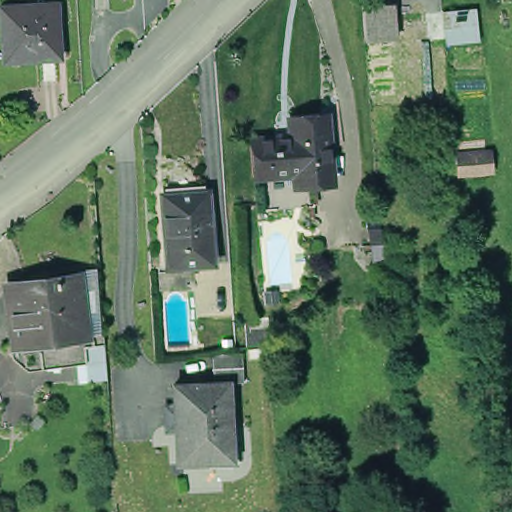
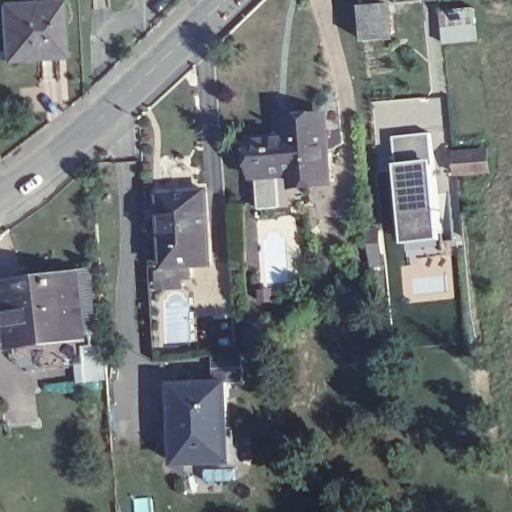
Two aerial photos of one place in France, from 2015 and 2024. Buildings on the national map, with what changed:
unchanged [(0,20),(0,11),(27,10),(27,6),(65,4),(65,15),(55,15),(57,62),(2,65),(0,20)]
unchanged [(374,32),(372,10),(395,7),(398,42),(375,45),(374,32)]
unchanged [(449,45),(447,12),(478,9),(481,42),(449,45)]
demolished [(447,39),(428,41),(426,15),(429,14),(445,13),(447,39)]
unchanged [(283,211),(271,212),(264,213),(261,179),(257,141),(277,139),(292,138),(291,124),(330,121),(335,186),(314,188),(315,209),(304,210),(283,211)]
new [(407,244),(397,165),(394,137),(432,133),(434,161),(444,240),(407,244)]
unchanged [(162,266),(155,193),(164,192),(201,190),(206,262),(185,264),(186,272),(179,284),(169,284),(163,284),(162,266)]
unchanged [(368,233),(379,231),(382,254),(384,263),(372,265),(371,255),(368,233)]
unchanged [(10,351),(2,290),(70,281),(77,341),(10,351)]
unchanged [(179,393),(234,389),(239,467),(183,470),(179,393)]

